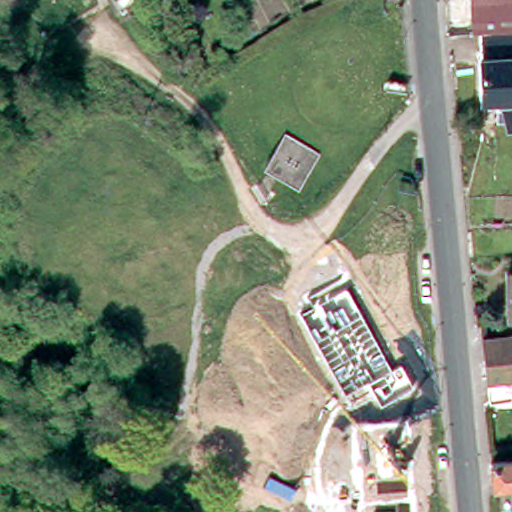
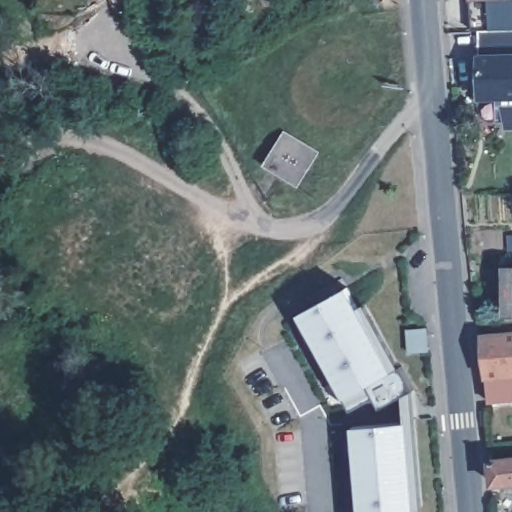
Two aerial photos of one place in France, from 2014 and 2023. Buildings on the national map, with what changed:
unchanged [(108,0),(117,0),(110,4),(108,0)]
unchanged [(467,25),(465,0),(512,0),(512,24),(467,25)]
unchanged [(477,92),(475,28),(512,27),(512,91),(477,92)]
unchanged [(287,134),(317,154),(296,184),(267,165),(287,134)]
unchanged [(501,316),(500,272),(512,272),(512,315),(501,316)]
unchanged [(351,409),(345,397),(300,315),(348,287),(357,307),(365,303),(412,390),(402,396),(382,407),(375,396),(351,409)]
unchanged [(512,335),(512,373),(487,376),(484,337),(512,335)]
new [(352,427),(405,422),(402,396),(412,390),(423,507),(414,508),(414,512),(359,512),(352,427)]
unchanged [(512,451),(512,485),(507,486),(507,482),(498,482),(498,478),(488,478),(487,453),(512,451)]

